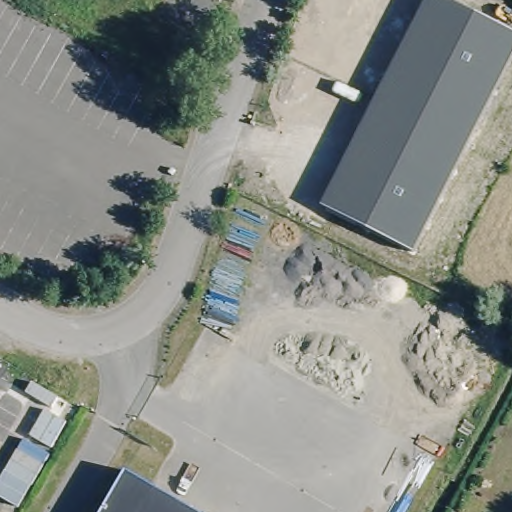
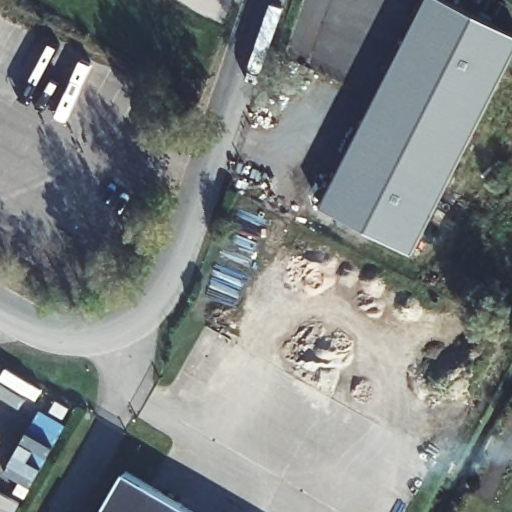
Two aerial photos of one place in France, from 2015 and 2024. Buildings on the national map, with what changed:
unchanged [(425,0),(446,0),(512,32),(512,60),(415,253),(322,205),(425,0)]
unchanged [(127,471),(196,512),(103,512),(127,471)]

